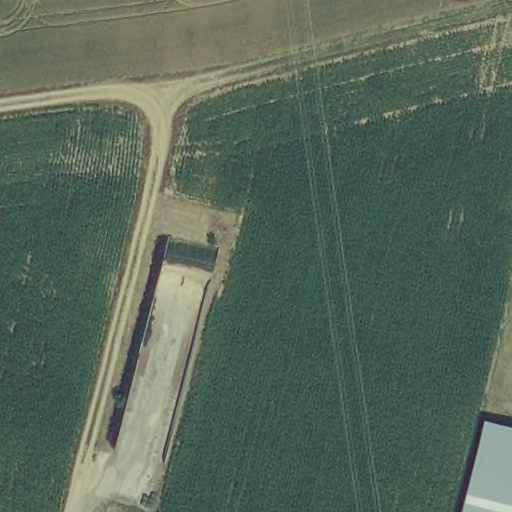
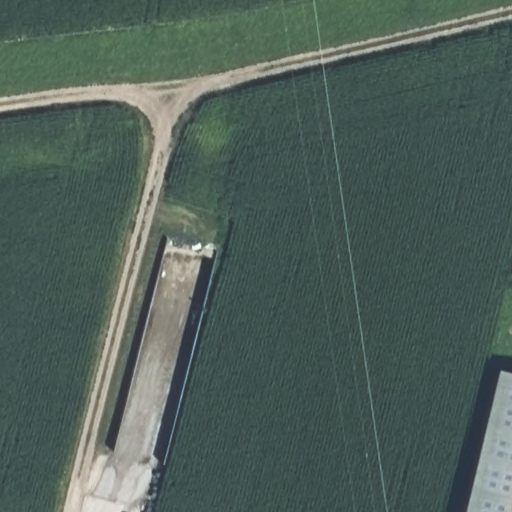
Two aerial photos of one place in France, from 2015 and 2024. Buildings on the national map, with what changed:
new [(512,374),(512,429),(485,423),(497,371),(512,374)]
unchanged [(512,429),(512,512),(462,512),(485,423),(512,429)]

